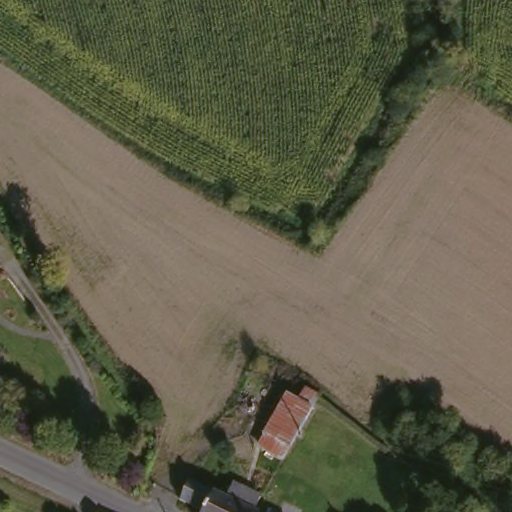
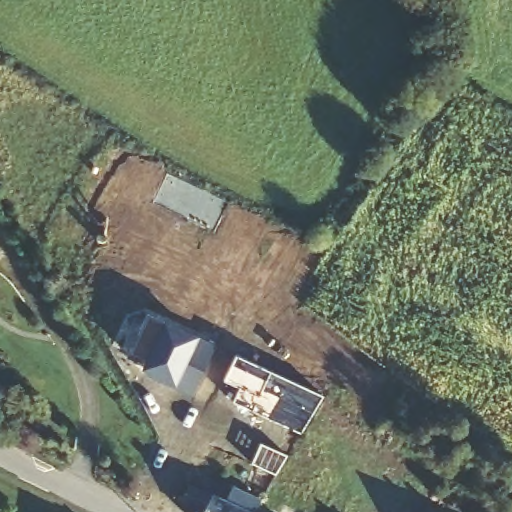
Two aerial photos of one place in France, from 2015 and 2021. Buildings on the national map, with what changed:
new [(150,317),(218,349),(194,399),(173,390),(176,385),(146,371),(149,363),(131,355),(150,317)]
unchanged [(291,395),(317,407),(291,458),(265,446),(291,395)]
unchanged [(187,501),(198,481),(234,498),(242,482),(272,497),(264,512),(207,512),(187,501)]

